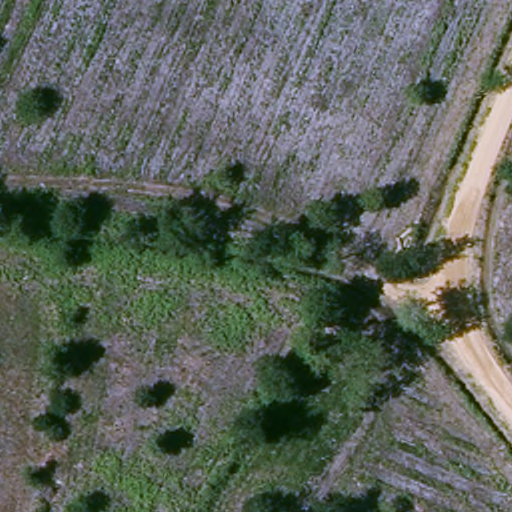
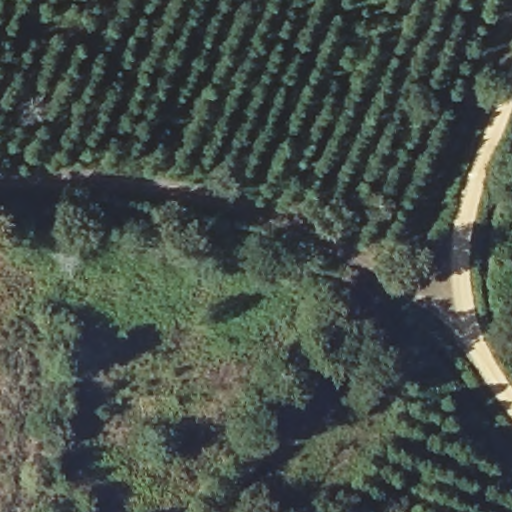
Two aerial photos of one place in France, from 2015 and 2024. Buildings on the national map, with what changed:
[]

